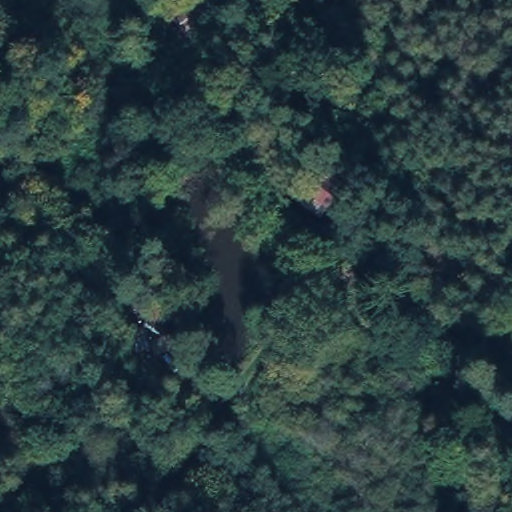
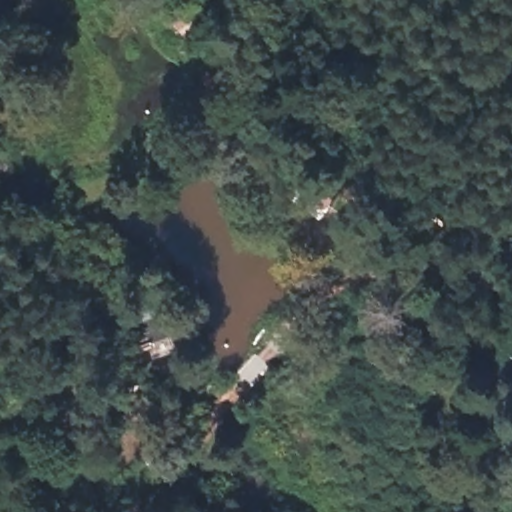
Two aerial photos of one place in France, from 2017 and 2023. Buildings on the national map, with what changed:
unchanged [(180,0),(206,0),(218,17),(188,34),(169,7),(180,0)]
unchanged [(124,330),(138,324),(133,302),(151,300),(158,321),(149,323),(154,345),(134,351),(124,330)]

